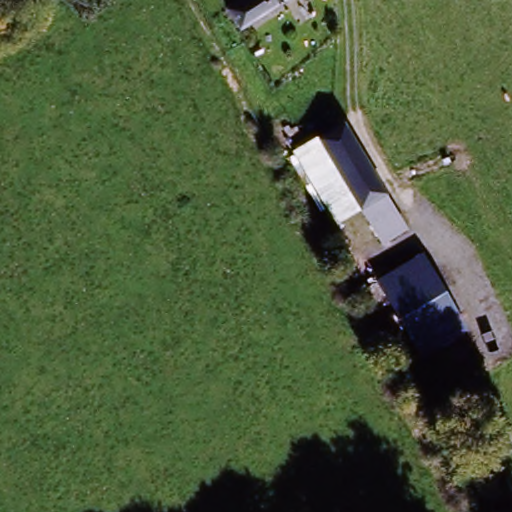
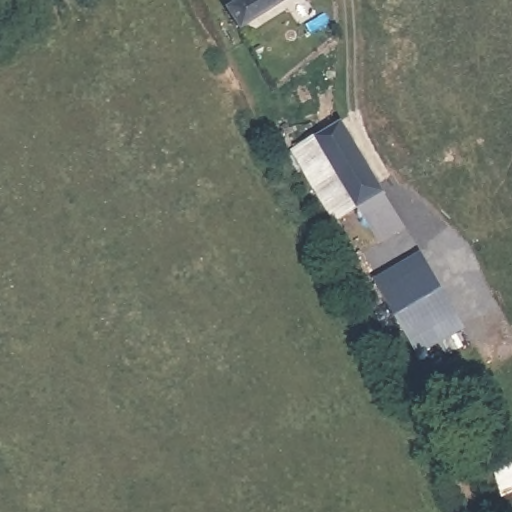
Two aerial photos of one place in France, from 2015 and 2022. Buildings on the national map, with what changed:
unchanged [(236,13),(254,0),(295,0),(249,31),(236,13)]
unchanged [(311,144),(330,131),(335,140),(342,135),(375,185),(348,203),(311,144)]
unchanged [(348,203),(375,185),(396,219),(370,236),(348,203)]
unchanged [(425,256),(468,324),(425,353),(380,285),(425,256)]

